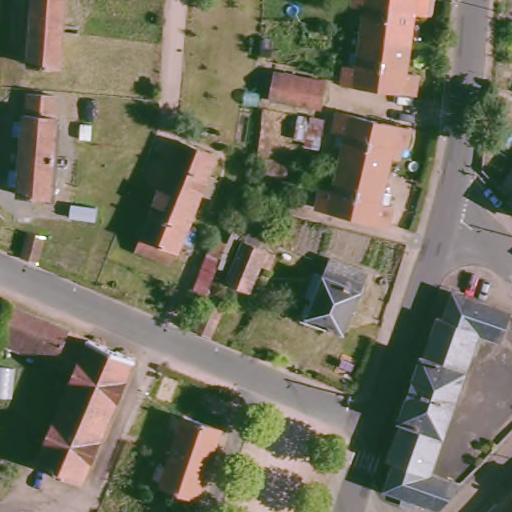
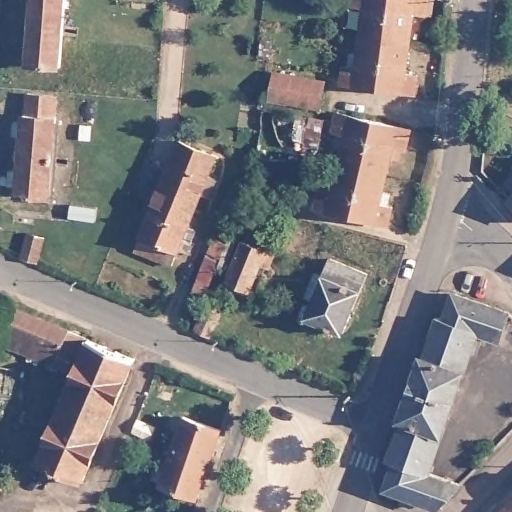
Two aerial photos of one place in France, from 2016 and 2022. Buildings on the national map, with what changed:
unchanged [(56,65),(25,62),(30,0),(61,0),(56,65)]
unchanged [(382,38),(356,34),(360,5),(350,3),(350,0),(388,0),(382,38)]
unchanged [(388,0),(427,0),(425,14),(410,12),(406,41),(382,38),(388,0)]
unchanged [(374,87),(337,81),(340,62),(352,64),(356,34),(382,38),(374,87)]
unchanged [(406,41),(402,71),(415,72),(412,92),(374,87),(382,38),(406,41)]
unchanged [(315,76),(310,104),(267,96),(272,69),(315,76)]
unchanged [(16,180),(5,179),(6,162),(17,164),(20,130),(10,129),(10,115),(21,116),(22,112),(23,112),(25,91),(52,93),(51,113),(53,114),(47,195),(15,192),(16,180)]
unchanged [(309,134),(307,144),(293,141),(295,135),(283,132),(289,109),(314,115),(309,134)]
unchanged [(339,146),(330,144),(334,131),(329,130),(333,112),(372,121),(360,167),(335,162),(339,146)]
unchanged [(387,156),(384,172),(360,167),(372,121),(407,129),(404,146),(399,145),(397,157),(387,156)]
unchanged [(168,264),(132,250),(175,141),(212,155),(168,264)]
unchanged [(360,167),(349,215),(313,207),(317,186),(329,189),(335,162),(360,167)]
unchanged [(384,172),(377,204),(390,207),(387,224),(349,215),(360,167),(384,172)]
unchanged [(512,222),(500,210),(512,192),(512,222)]
unchanged [(87,199),(85,224),(72,223),(74,197),(87,199)]
unchanged [(220,244),(229,230),(237,235),(222,273),(208,272),(197,298),(182,292),(209,239),(220,244)]
unchanged [(22,255),(30,232),(45,237),(37,261),(22,256),(22,255)]
unchanged [(269,250),(263,264),(254,261),(243,287),(223,278),(239,239),(269,250)]
unchanged [(344,331),(306,315),(330,258),(367,273),(344,331)]
unchanged [(397,502),(399,495),(380,487),(390,461),(383,458),(432,318),(440,321),(450,293),(505,312),(495,340),(473,332),(424,473),(455,486),(434,507),(412,499),(410,507),(397,502)]
unchanged [(78,338),(65,373),(47,365),(0,346),(0,313),(2,307),(23,317),(37,321),(78,338)]
unchanged [(78,338),(127,359),(75,482),(27,462),(65,373),(78,338)]
unchanged [(155,481),(179,413),(205,422),(214,393),(224,397),(215,425),(217,425),(194,493),(155,481)]
unchanged [(512,512),(495,512),(512,493),(512,512)]

